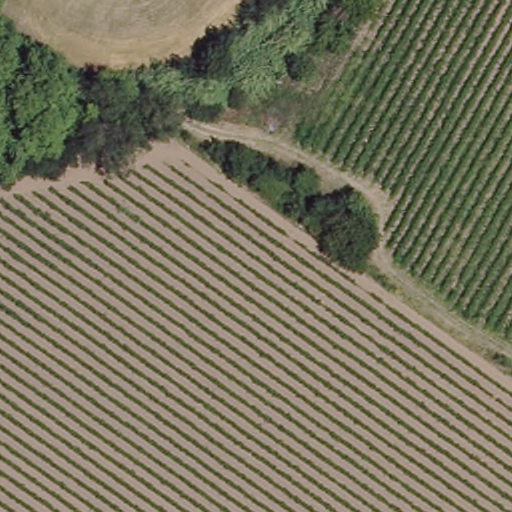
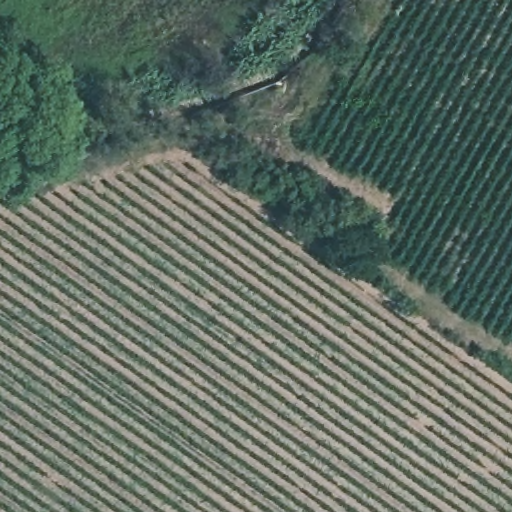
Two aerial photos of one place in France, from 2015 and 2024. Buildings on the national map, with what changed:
unchanged [(343,224),(337,240),(315,231),(321,215),(343,224)]

